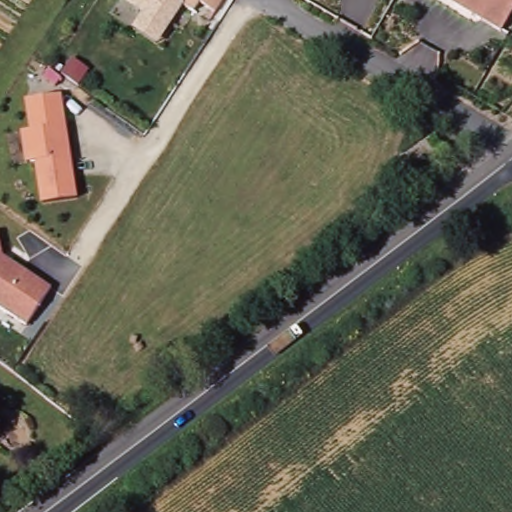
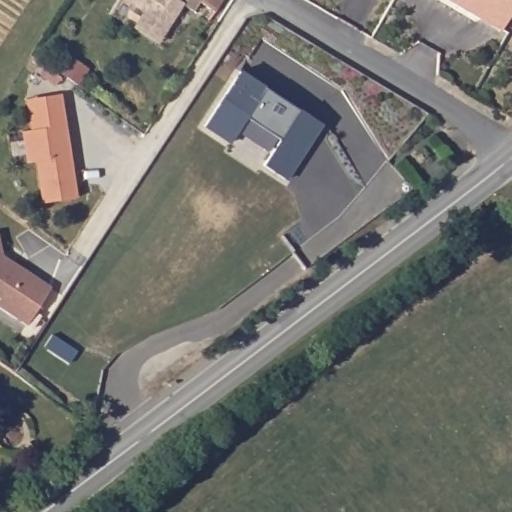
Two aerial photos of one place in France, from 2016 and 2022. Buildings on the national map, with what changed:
unchanged [(131,31),(141,14),(119,0),(174,0),(184,7),(157,47),(131,31)]
unchanged [(196,2),(190,11),(174,0),(219,0),(212,12),(196,2)]
unchanged [(456,5),(458,1),(457,0),(512,0),(512,17),(503,32),(456,5)]
unchanged [(197,16),(205,22),(196,36),(187,30),(197,16)]
new [(264,165),(281,139),(247,117),(230,143),(205,126),(242,71),(322,123),(288,180),(264,165)]
unchanged [(60,97),(76,198),(36,206),(31,165),(23,166),(17,134),(26,132),(23,101),(60,97)]
unchanged [(0,309),(0,247),(3,257),(51,287),(29,327),(0,309)]

